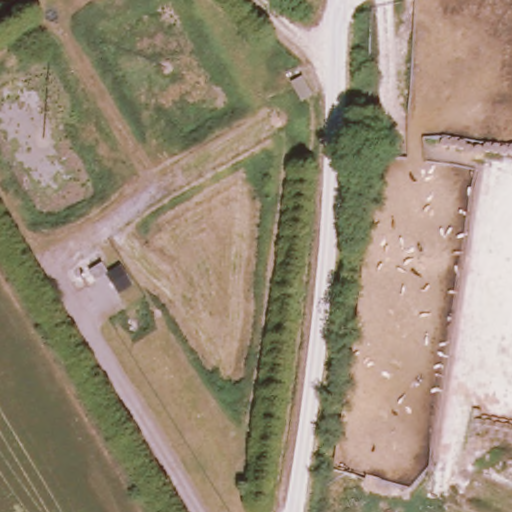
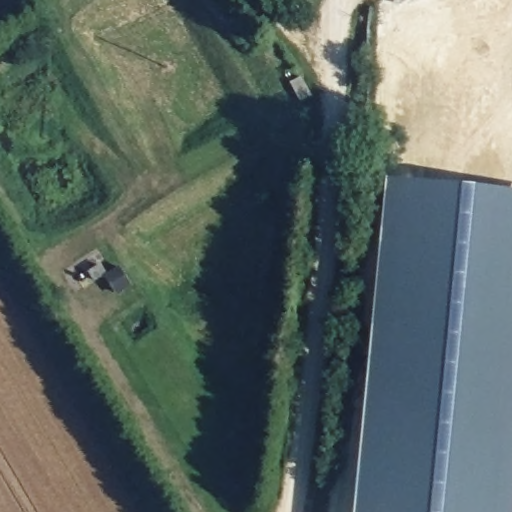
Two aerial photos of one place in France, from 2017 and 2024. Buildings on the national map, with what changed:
unchanged [(299,77),(309,96),(299,102),(289,83),(299,77)]
new [(512,512),(354,512),(386,182),(512,193),(512,512)]

